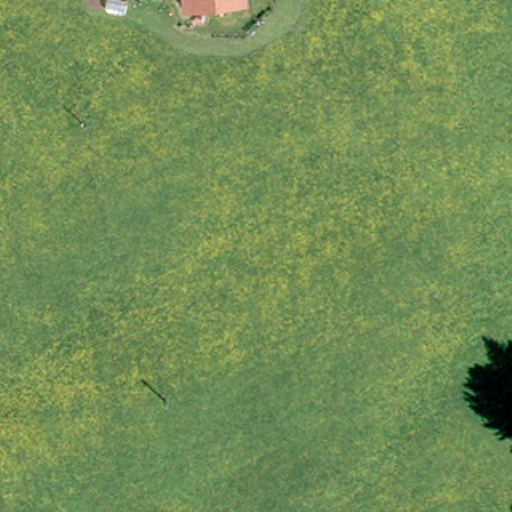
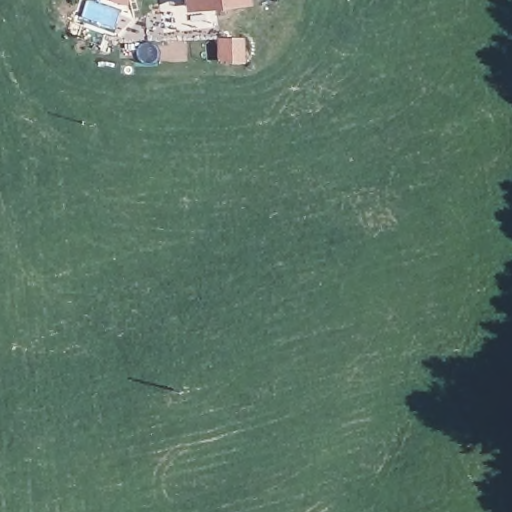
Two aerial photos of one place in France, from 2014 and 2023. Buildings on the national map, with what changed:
unchanged [(182,15),(181,0),(249,0),(250,7),(182,15)]

